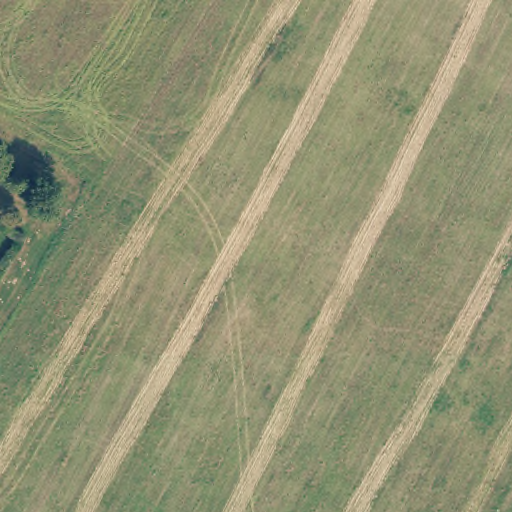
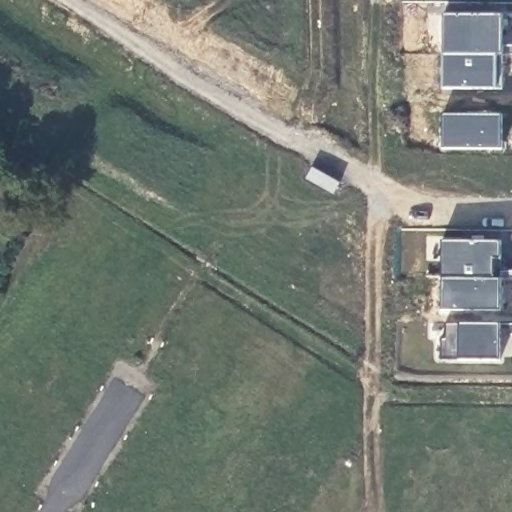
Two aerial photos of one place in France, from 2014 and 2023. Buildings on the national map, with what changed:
new [(442,55),(443,15),(475,15),(475,20),(482,20),(482,15),(503,15),(503,50),(512,50),(512,55),(502,55),(442,55)]
new [(442,55),(502,55),(502,90),(442,90),(442,55)]
new [(502,115),(502,141),(512,142),(512,150),(442,150),(442,115),(502,115)]
new [(312,169),(340,184),(334,195),(307,180),(312,169)]
new [(441,279),(441,241),(501,242),(501,272),(512,272),(512,279),(501,279),(441,279)]
new [(441,279),(501,279),(501,312),(441,311),(441,279)]
new [(445,339),(444,323),(512,324),(512,332),(501,332),(500,361),(440,361),(441,340),(445,339)]

